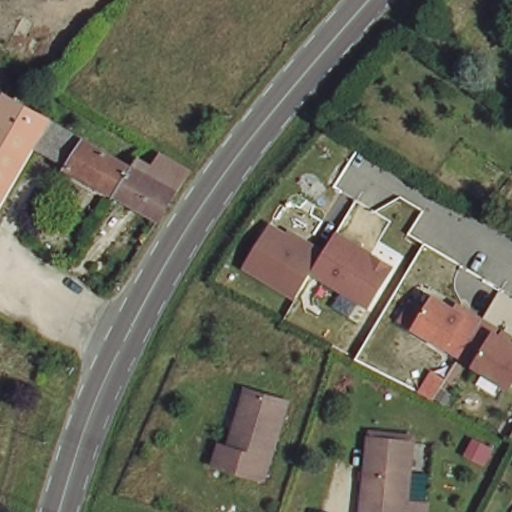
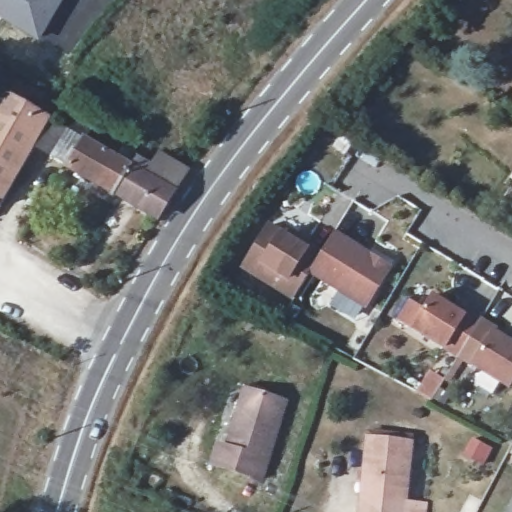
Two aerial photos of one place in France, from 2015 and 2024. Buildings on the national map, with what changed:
new [(39,44),(0,23),(0,0),(63,0),(39,44)]
demolished [(0,46),(0,2),(25,16),(6,49),(0,46)]
unchanged [(1,202),(0,202),(0,113),(15,91),(58,118),(42,141),(1,202)]
unchanged [(58,152),(42,141),(58,118),(90,140),(75,164),(58,152)]
unchanged [(136,171),(146,179),(161,157),(194,179),(180,197),(162,225),(119,195),(75,164),(90,140),(136,171)]
unchanged [(367,306),(310,272),(294,299),(242,266),(273,217),(323,245),(334,228),(394,268),(367,306)]
unchanged [(511,388),(409,326),(432,288),(512,342),(512,386),(511,388)]
unchanged [(263,476),(215,464),(220,444),(230,447),(248,390),(285,401),(263,476)]
unchanged [(406,491),(425,493),(423,512),(363,512),(370,435),(410,437),(406,491)]

